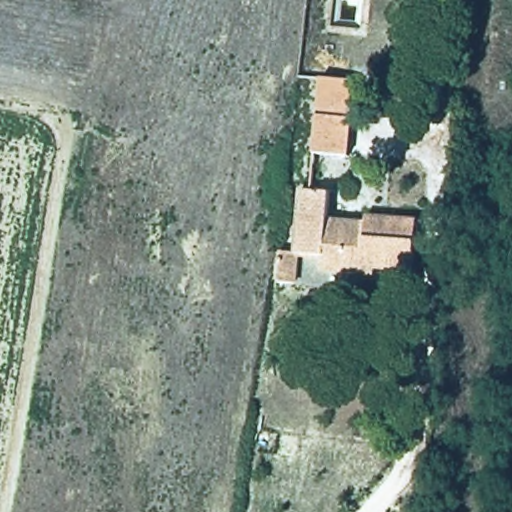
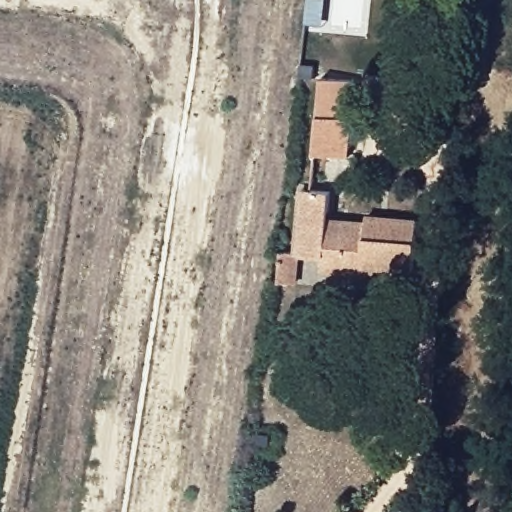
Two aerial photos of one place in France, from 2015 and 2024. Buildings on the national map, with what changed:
unchanged [(322,78),(356,82),(348,157),(314,153),(322,78)]
unchanged [(366,221),(366,214),(416,219),(410,273),(374,269),(374,275),(321,271),(323,256),(299,253),(298,279),(278,278),(280,251),(293,252),(299,189),(329,191),(328,218),(366,221)]

